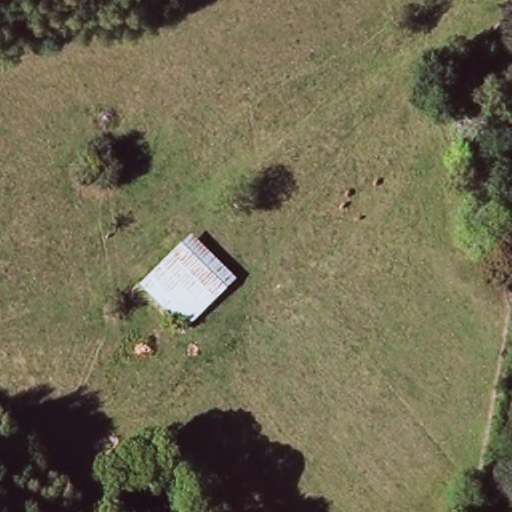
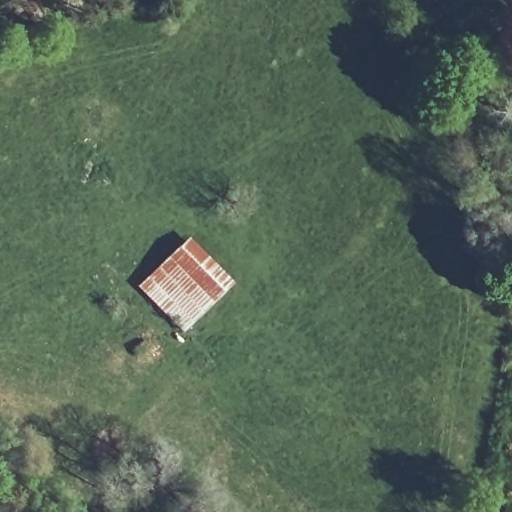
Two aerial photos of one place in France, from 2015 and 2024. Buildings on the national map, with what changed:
unchanged [(146,283),(200,233),(244,281),(191,327),(146,283)]

